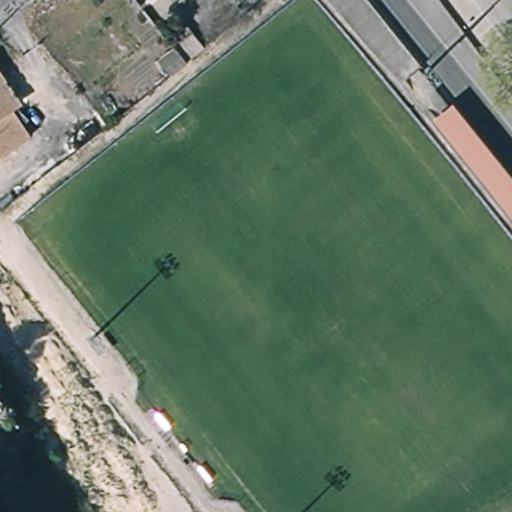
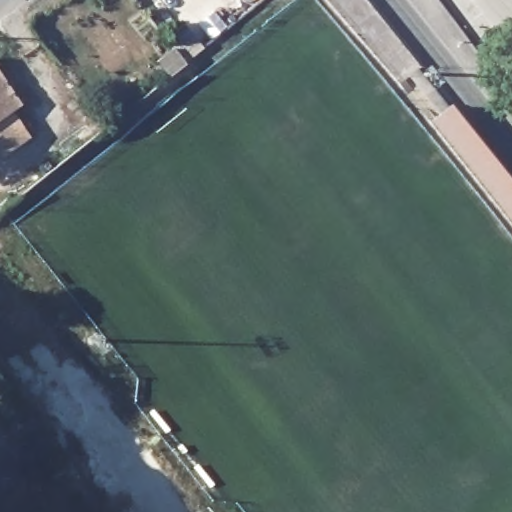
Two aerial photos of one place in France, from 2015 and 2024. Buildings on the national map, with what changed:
unchanged [(421,63),(402,79),(334,0),(372,0),(421,63)]
unchanged [(173,49),(164,38),(184,22),(205,48),(185,64),(173,72),(169,76),(157,61),(173,49)]
unchanged [(20,108),(12,113),(30,141),(0,161),(0,78),(20,108)]
unchanged [(512,169),(512,211),(439,121),(460,105),(498,151),(512,169)]

